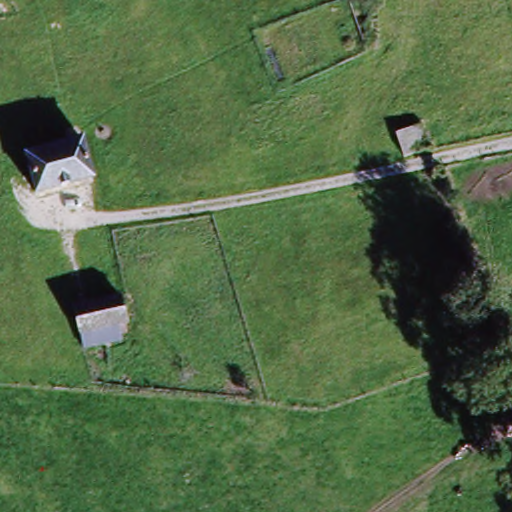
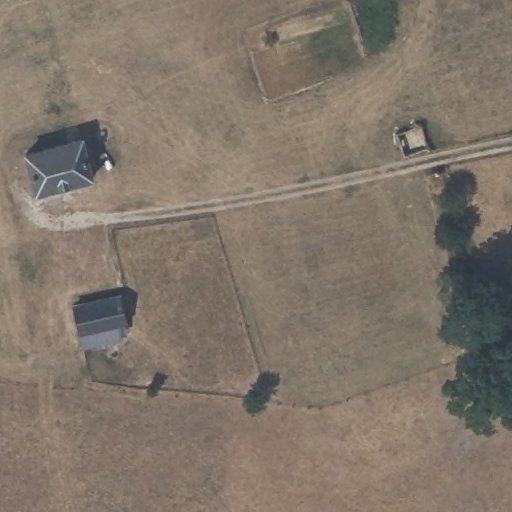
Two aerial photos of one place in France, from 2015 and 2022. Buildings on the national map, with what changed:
unchanged [(433,146),(406,154),(398,131),(427,122),(433,146)]
unchanged [(79,139),(89,177),(32,194),(21,155),(79,139)]
unchanged [(115,300),(121,322),(112,324),(115,338),(77,346),(69,310),(115,300)]

